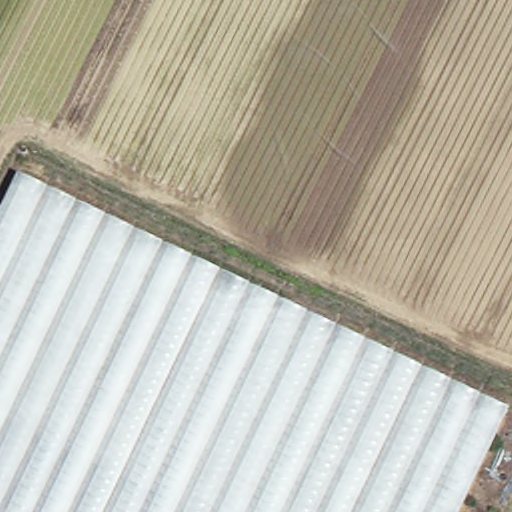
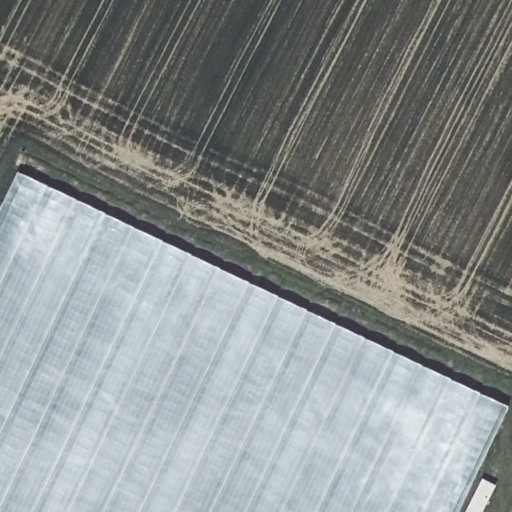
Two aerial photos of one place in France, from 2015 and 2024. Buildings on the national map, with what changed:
unchanged [(449,512),(0,512),(0,189),(8,171),(498,407),(449,512)]

